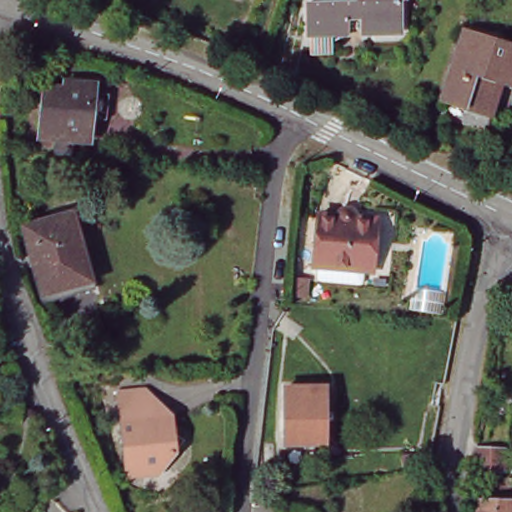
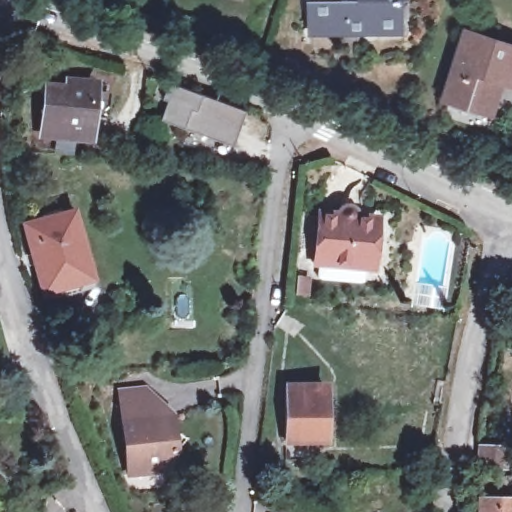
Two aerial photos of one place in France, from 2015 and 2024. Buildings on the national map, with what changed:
unchanged [(363,28),(362,13),(351,14),(351,28),(313,28),(312,0),(401,0),(402,27),(363,28)]
unchanged [(483,111),(442,99),(463,32),(512,48),(512,81),(501,78),(490,114),(483,111)]
unchanged [(91,124),(90,136),(43,132),(48,86),(66,89),(67,80),(94,84),(91,124)]
new [(168,101),(161,98),(168,83),(243,109),(231,143),(160,119),(168,101)]
unchanged [(316,214),(339,214),(341,204),(358,205),(359,213),(372,213),(373,219),(384,221),(378,273),(312,269),(316,214)]
unchanged [(46,288),(29,226),(70,214),(88,277),(46,288)]
unchanged [(19,399),(0,407),(0,378),(8,374),(19,399)]
unchanged [(128,458),(118,388),(157,383),(158,396),(163,396),(166,411),(171,410),(174,434),(158,454),(128,458)]
unchanged [(286,387),(324,386),(325,436),(318,436),(306,436),(306,441),(286,441),(286,387)]
unchanged [(477,448),(512,447),(512,485),(476,487),(477,448)]
unchanged [(406,471),(402,453),(433,448),(431,468),(424,469),(406,471)]
unchanged [(480,498),(512,499),(512,512),(480,512),(480,498)]

